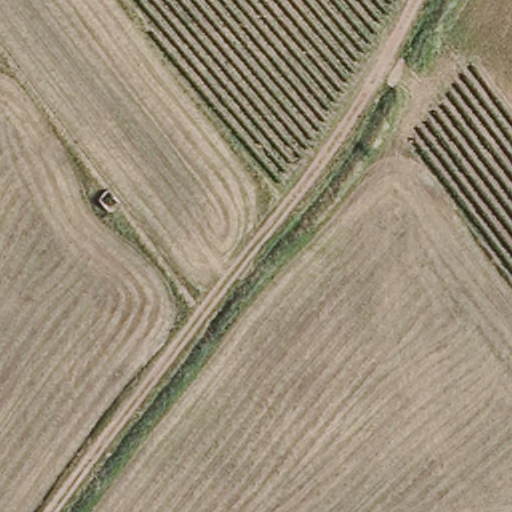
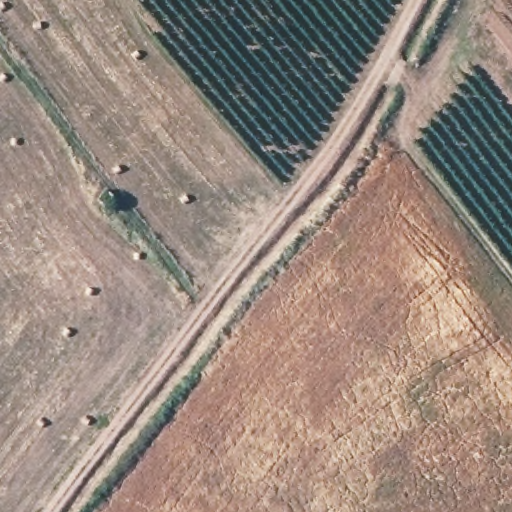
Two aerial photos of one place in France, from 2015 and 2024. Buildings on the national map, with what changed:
unchanged [(128,198),(111,215),(95,198),(107,185),(128,198)]

